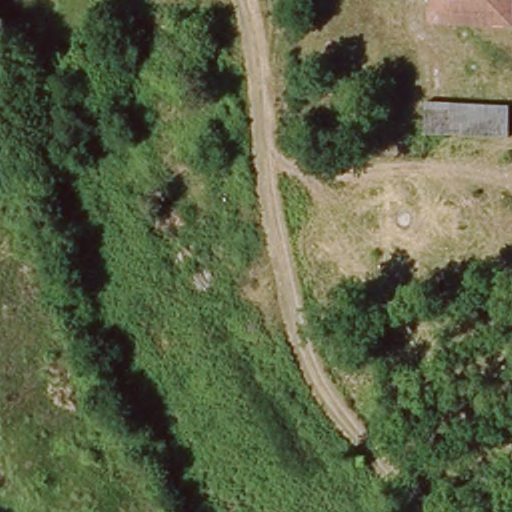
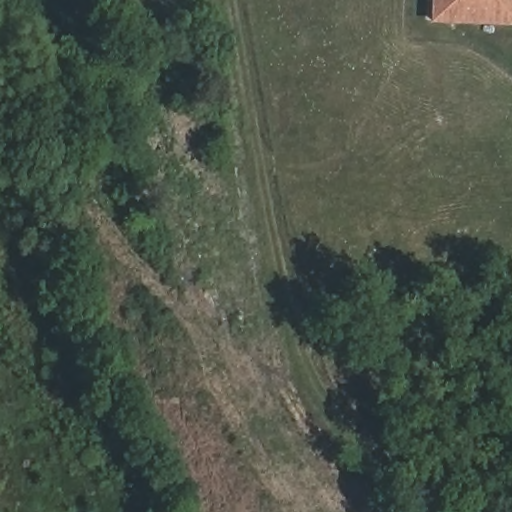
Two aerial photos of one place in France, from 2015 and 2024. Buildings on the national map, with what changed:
unchanged [(438,0),(512,0),(512,19),(438,20),(438,0)]
demolished [(510,135),(427,137),(427,103),(510,101),(510,135)]

